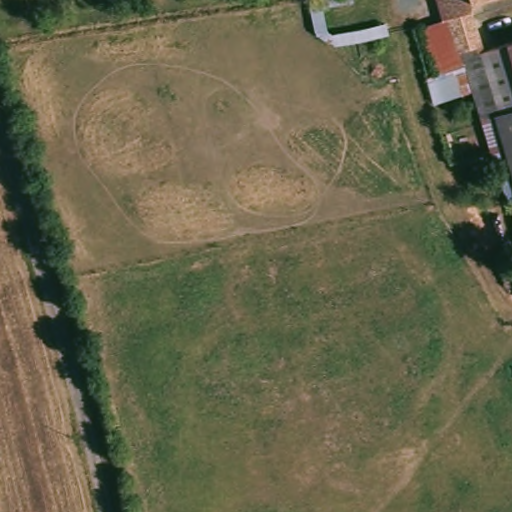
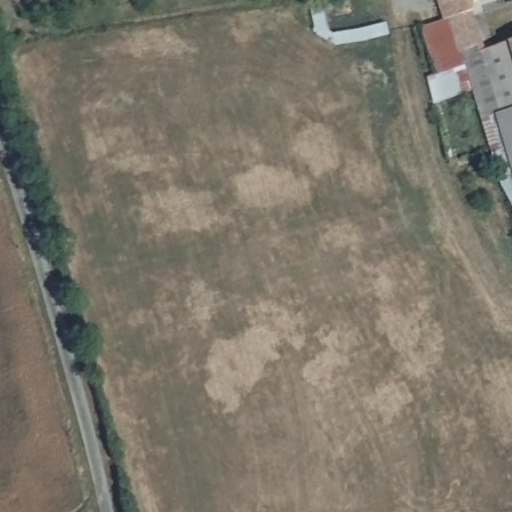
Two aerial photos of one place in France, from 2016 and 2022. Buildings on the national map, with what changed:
unchanged [(472,12),(450,16),(446,18),(440,0),(473,0),(473,2),(472,12)]
unchanged [(473,0),(480,0),(473,2),(473,0)]
unchanged [(463,67),(451,18),(450,16),(472,12),(483,49),(512,40),(512,106),(476,115),(463,67)]
unchanged [(446,18),(450,16),(451,18),(463,67),(435,74),(422,27),(446,18)]
unchanged [(476,115),(512,106),(512,201),(503,203),(476,115)]

